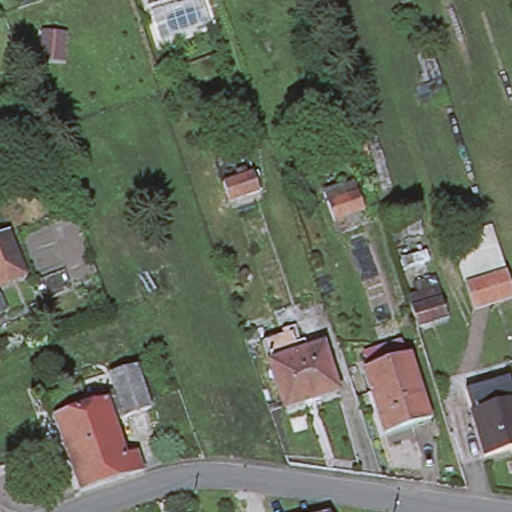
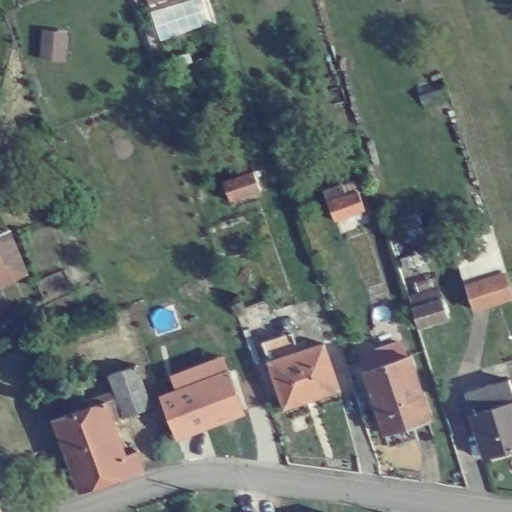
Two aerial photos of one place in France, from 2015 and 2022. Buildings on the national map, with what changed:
unchanged [(263,185),(232,196),(225,179),(255,166),(263,185)]
unchanged [(362,206),(332,217),(325,198),(321,189),(340,182),(344,191),(355,188),(362,206)]
unchanged [(470,310),(447,236),(485,225),(507,302),(470,310)]
unchanged [(0,268),(0,259),(12,254),(18,272),(4,278),(0,279),(0,268)]
demolished [(167,267),(175,287),(145,297),(137,277),(167,267)]
unchanged [(410,294),(442,285),(450,315),(418,325),(412,302),(410,294)]
unchanged [(290,340),(297,360),(321,352),(336,396),(282,413),(260,350),(290,340)]
new [(169,373),(221,354),(227,370),(240,407),(173,433),(159,395),(175,390),(169,373)]
unchanged [(408,355),(428,415),(382,429),(363,369),(408,355)]
unchanged [(129,365),(142,403),(105,415),(100,400),(110,396),(103,374),(129,365)]
unchanged [(505,378),(512,400),(512,447),(480,455),(461,391),(505,378)]
unchanged [(48,417),(82,405),(100,400),(105,415),(112,432),(83,443),(90,465),(68,473),(48,419),(48,417)]
unchanged [(83,443),(112,432),(117,448),(123,446),(125,452),(131,451),(138,470),(126,473),(75,491),(68,473),(90,465),(83,443)]

